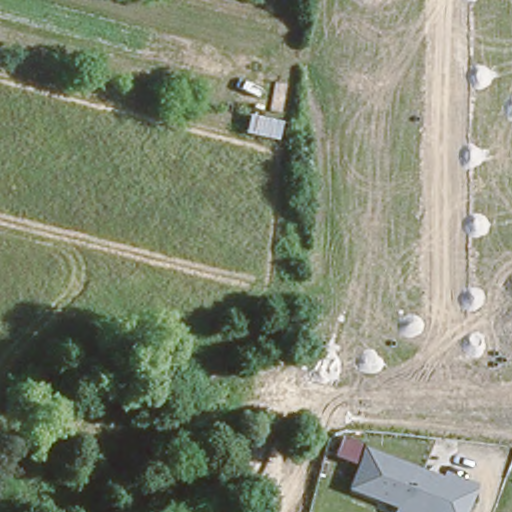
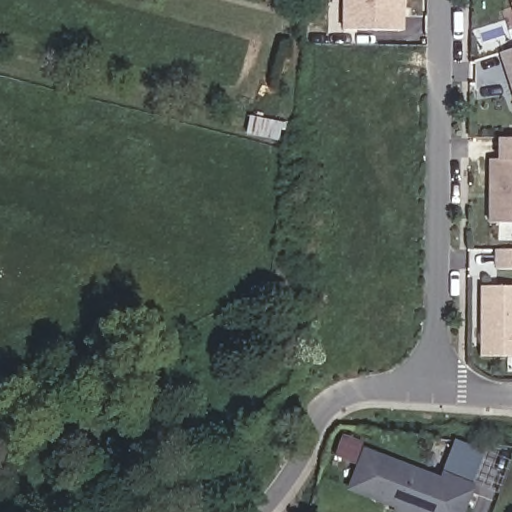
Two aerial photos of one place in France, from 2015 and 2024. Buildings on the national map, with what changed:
new [(404,31),(341,30),(342,0),(404,0),(404,31)]
new [(510,0),(512,0),(512,7),(510,0)]
new [(498,53),(512,49),(512,96),(498,53)]
new [(488,223),(489,159),(496,159),(496,138),(512,138),(512,223),(488,223)]
new [(479,357),(480,286),(512,287),(512,357),(479,357)]
unchanged [(346,491),(363,449),(441,478),(443,473),(447,476),(457,447),(485,457),(475,485),(465,512),(386,512),(387,506),(346,491)]

